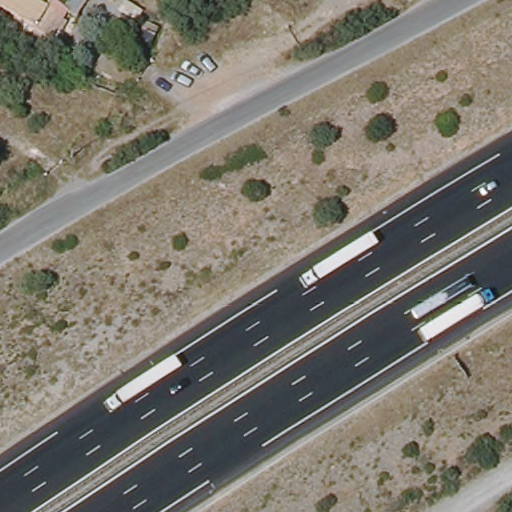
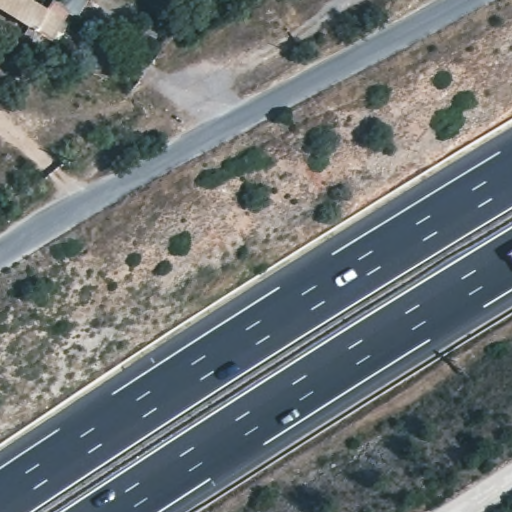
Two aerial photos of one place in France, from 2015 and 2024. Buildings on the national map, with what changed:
unchanged [(30,35),(0,17),(0,0),(21,0),(43,13),(30,35)]

